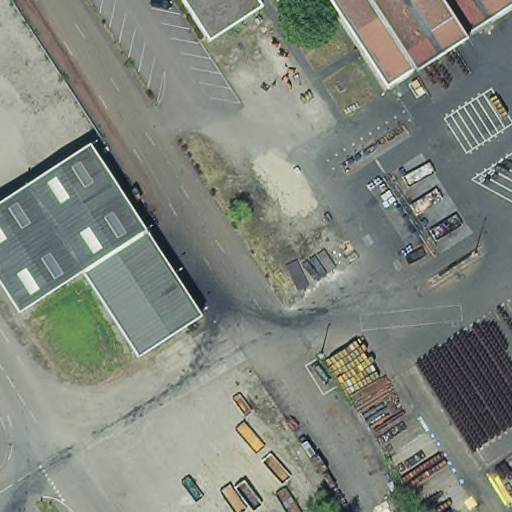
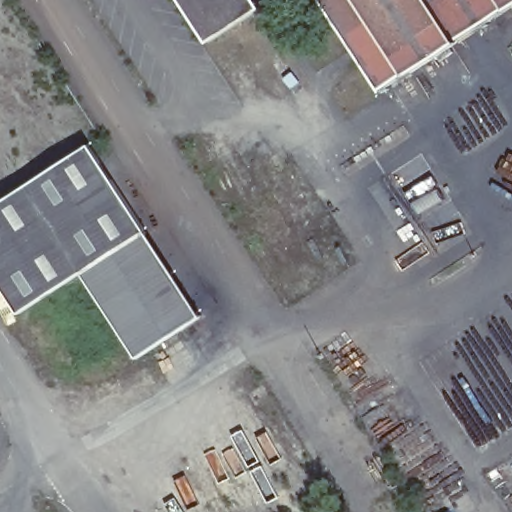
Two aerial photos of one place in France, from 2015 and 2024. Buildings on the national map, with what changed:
unchanged [(260,2),(205,39),(180,0),(258,0),(260,2)]
unchanged [(381,92),(323,0),(512,0),(512,10),(381,92)]
unchanged [(12,307),(0,289),(0,200),(80,146),(195,316),(137,353),(80,268),(12,307)]

